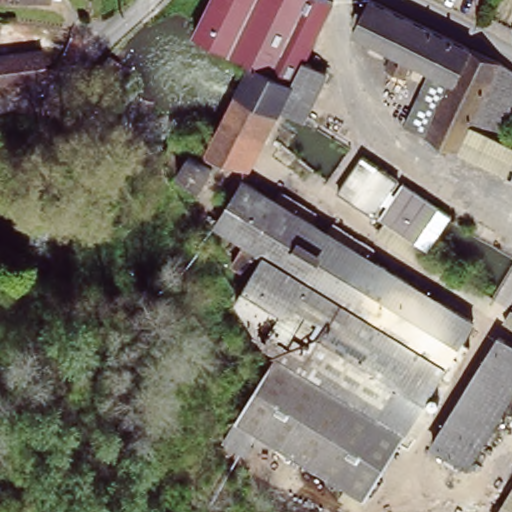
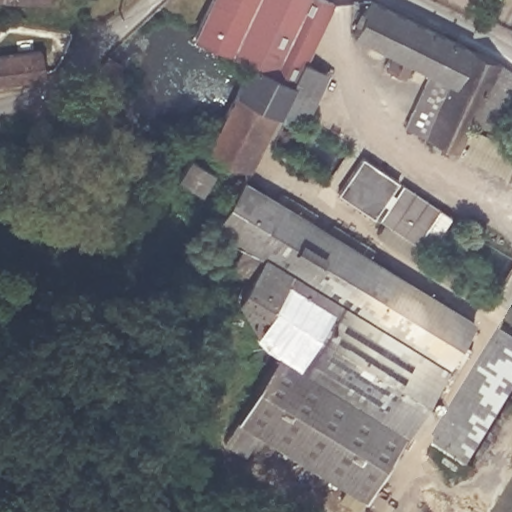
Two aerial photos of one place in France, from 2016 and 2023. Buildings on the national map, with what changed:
unchanged [(245,176),(219,163),(202,198),(169,180),(191,149),(202,157),(232,95),(248,62),(192,32),(208,0),(336,0),(307,53),(332,68),(310,116),(289,103),(286,111),(274,104),(268,118),(245,176)]
unchanged [(428,70),(348,36),(365,0),(389,0),(505,58),(457,159),(405,125),(428,70)]
unchanged [(131,25),(153,12),(156,16),(161,21),(142,37),(138,33),(131,25)]
unchanged [(39,41),(43,69),(0,79),(0,50),(39,41)]
unchanged [(500,137),(512,144),(512,159),(504,174),(460,154),(505,58),(512,64),(512,109),(500,137)]
unchanged [(428,255),(339,192),(351,171),(363,150),(454,212),(443,230),(428,255)]
unchanged [(273,355),(236,300),(247,283),(230,272),(238,245),(213,230),(240,178),(482,321),(364,503),(264,437),(244,465),(220,445),(273,355)]
unchanged [(512,339),(512,409),(477,471),(431,449),(500,331),(512,339)]
unchanged [(504,512),(512,496),(512,512),(504,512)]

